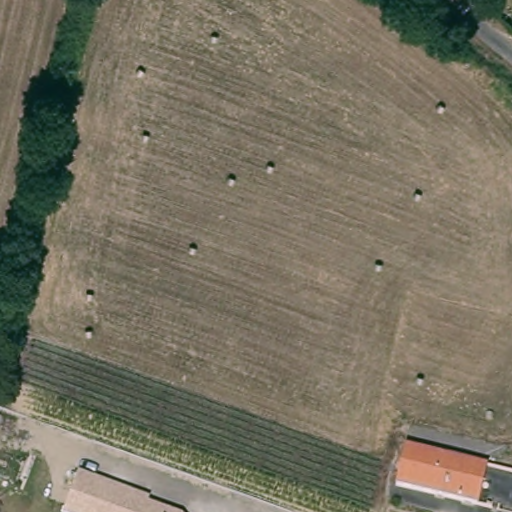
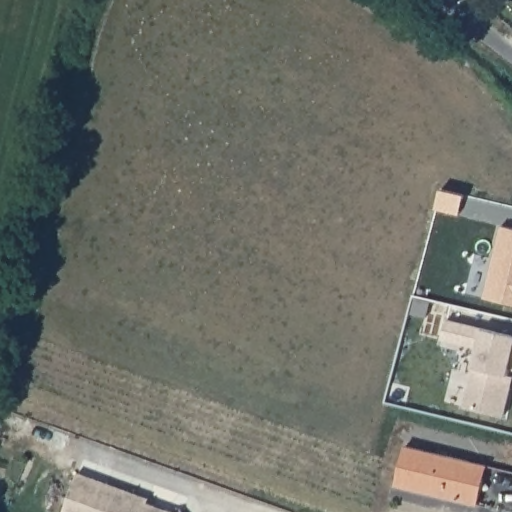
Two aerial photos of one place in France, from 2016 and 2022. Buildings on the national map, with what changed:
new [(512,233),(512,309),(483,302),(499,230),(512,233)]
new [(509,392),(502,420),(462,411),(476,352),(440,344),(444,324),(512,340),(512,374),(508,373),(506,380),(512,381),(509,392)]
unchanged [(392,489),(402,450),(484,470),(474,509),(392,489)]
unchanged [(78,472),(149,498),(148,504),(173,512),(64,512),(78,472)]

